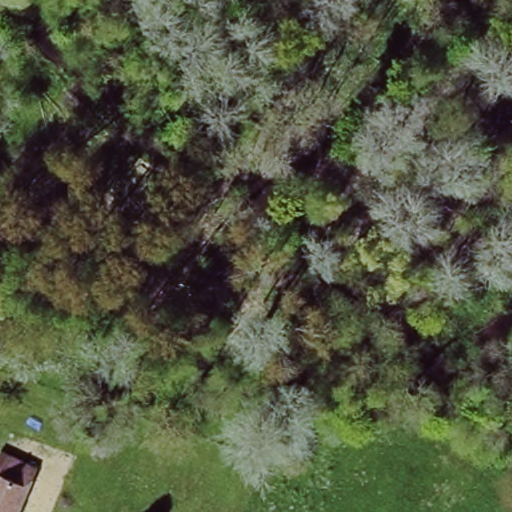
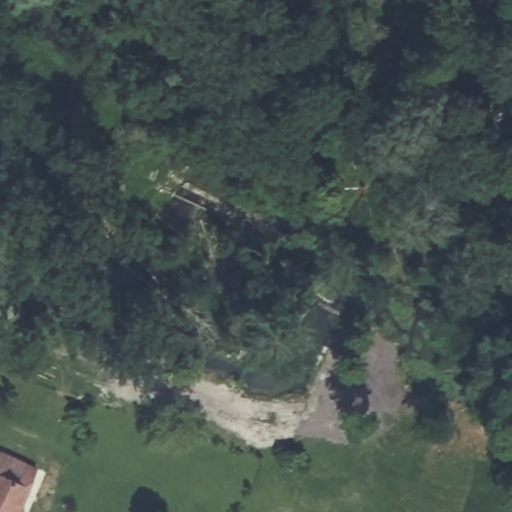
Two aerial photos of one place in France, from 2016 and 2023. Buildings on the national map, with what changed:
unchanged [(23,466),(36,472),(20,512),(0,512),(0,456),(23,466)]

